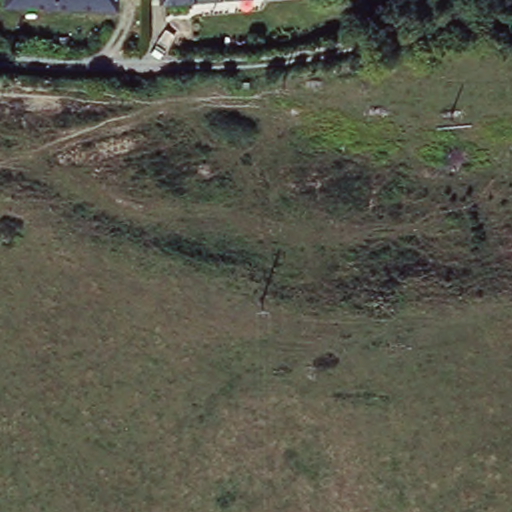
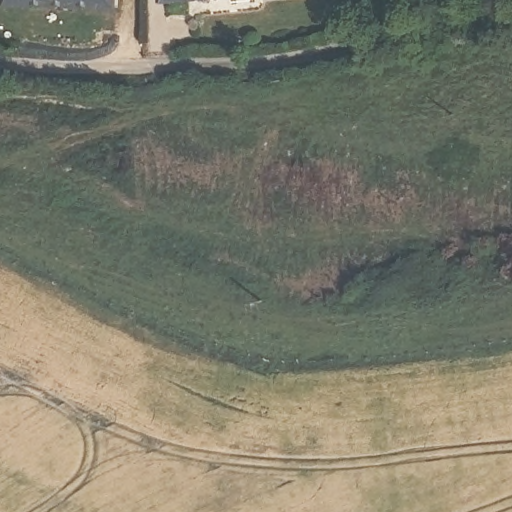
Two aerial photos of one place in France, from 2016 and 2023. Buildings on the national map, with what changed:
unchanged [(119,7),(10,3),(11,0),(119,0),(119,7)]

